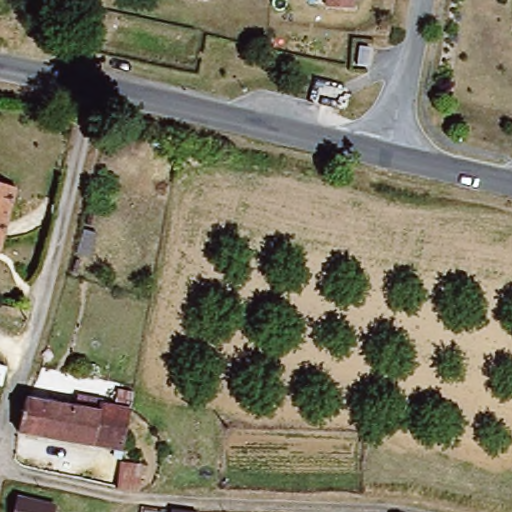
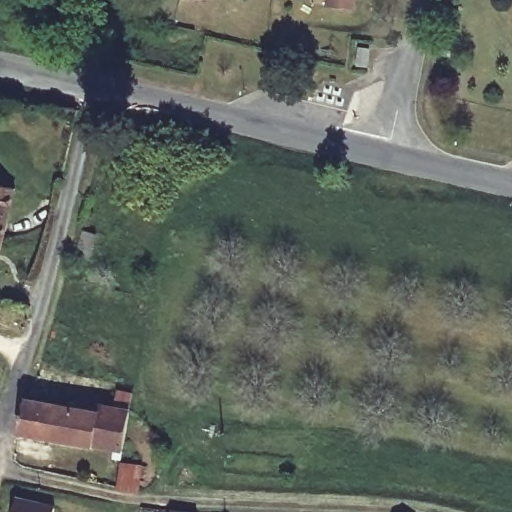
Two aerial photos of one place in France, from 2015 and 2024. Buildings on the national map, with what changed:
unchanged [(180,0),(206,0),(206,2),(180,0)]
unchanged [(327,10),(328,0),(354,0),(353,11),(327,10)]
unchanged [(358,47),(372,48),(370,69),(355,67),(358,47)]
unchanged [(0,235),(0,189),(11,192),(0,235)]
unchanged [(102,410),(130,415),(123,455),(18,436),(25,403),(75,413),(77,400),(103,405),(102,410)]
unchanged [(142,475),(139,496),(128,495),(117,494),(117,491),(120,472),(142,475)]
unchanged [(55,507),(54,512),(13,512),(17,499),(55,507)]
unchanged [(170,510),(189,512),(170,512),(170,510)]

